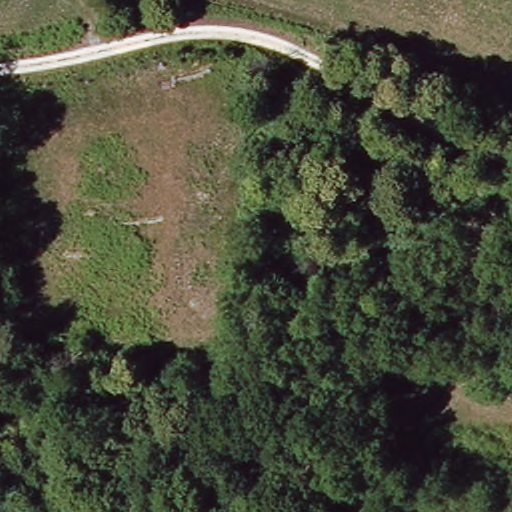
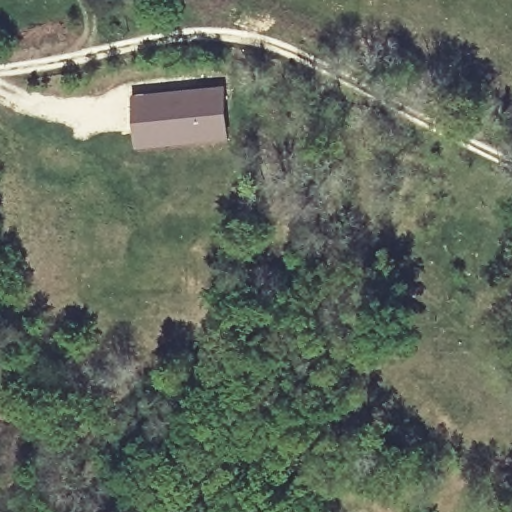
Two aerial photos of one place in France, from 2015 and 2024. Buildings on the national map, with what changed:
new [(225,85),(231,140),(135,151),(130,94),(225,85)]

